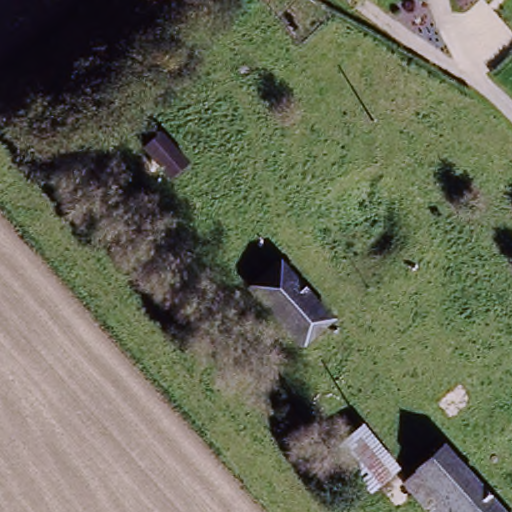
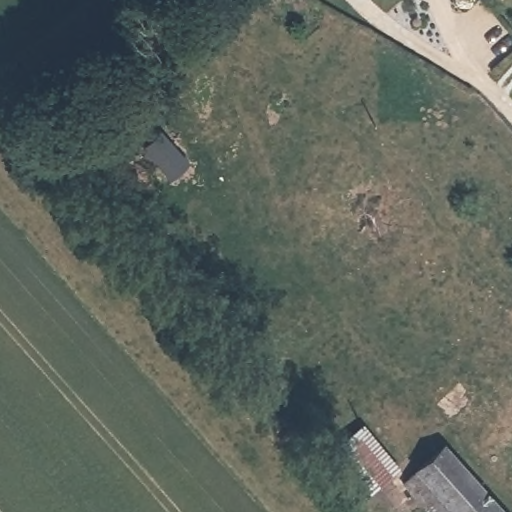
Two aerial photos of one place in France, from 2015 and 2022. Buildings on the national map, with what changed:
unchanged [(187,163),(166,181),(135,147),(155,128),(187,163)]
demolished [(276,250),(327,309),(298,335),(246,278),(276,250)]
unchanged [(359,424),(400,466),(392,473),(372,492),(331,451),(355,428),(359,424)]
unchanged [(439,445),(506,512),(424,512),(398,485),(439,445)]

